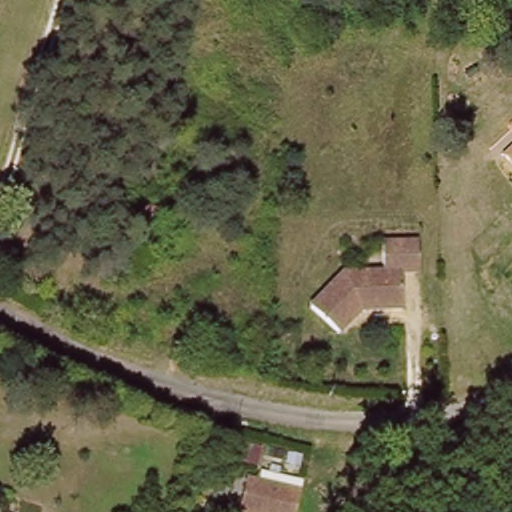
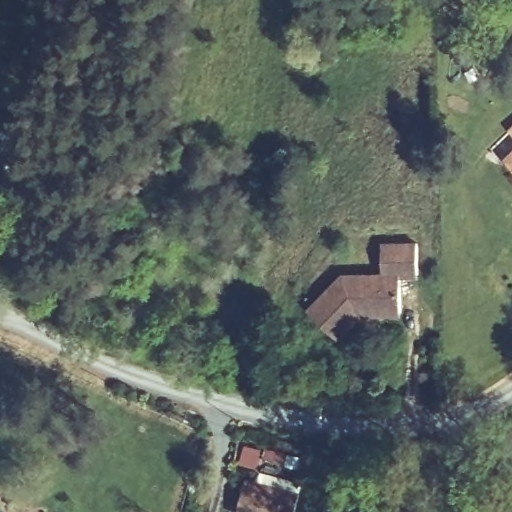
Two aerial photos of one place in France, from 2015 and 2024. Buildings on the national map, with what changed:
unchanged [(156,209),(136,204),(124,201),(126,191),(139,193),(158,197),(156,209)]
unchanged [(425,277),(408,277),(407,315),(377,314),(377,310),(371,309),(343,336),(317,308),(351,275),(390,275),(390,246),(425,246),(425,277)]
unchanged [(252,481),(272,486),(305,495),(300,512),(244,512),(252,481)]

